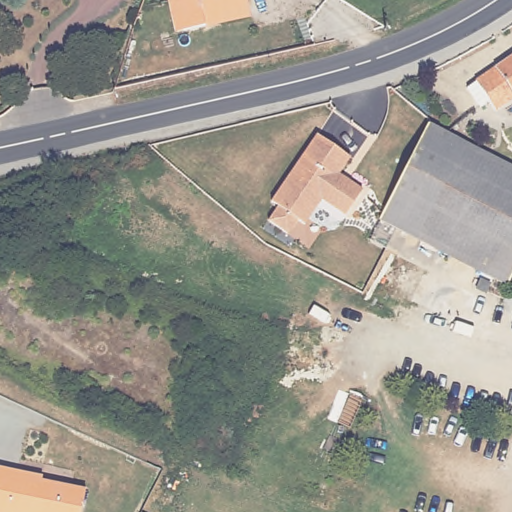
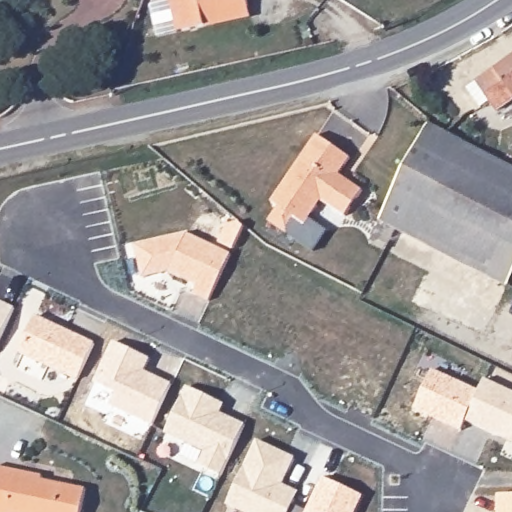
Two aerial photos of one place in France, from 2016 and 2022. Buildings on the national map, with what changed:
unchanged [(203,22),(180,28),(173,30),(168,0),(245,0),(246,4),(248,13),(203,22)]
unchanged [(473,81),(512,53),(512,110),(500,119),(485,98),(477,104),(465,88),(473,81)]
unchanged [(428,128),(512,172),(512,280),(507,290),(379,223),(428,128)]
unchanged [(327,232),(312,252),(288,234),(269,220),(273,214),(278,206),(271,201),(295,166),(317,134),(351,157),(339,174),(363,190),(347,213),(345,215),(322,199),(305,224),(309,219),(327,232)]
new [(191,230),(235,251),(213,297),(198,290),(202,282),(173,268),(147,274),(140,242),(191,230)]
new [(15,309),(0,338),(0,301),(15,309)]
new [(35,314),(94,343),(76,381),(18,353),(35,314)]
new [(479,391),(486,378),(512,391),(512,442),(466,420),(460,432),(414,409),(433,369),(479,391)]
new [(186,387),(225,404),(221,413),(245,423),(220,475),(198,464),(204,450),(165,434),(186,387)]
new [(256,439),(295,457),(282,484),(299,491),(293,506),(306,511),(322,476),(364,495),(356,512),(244,512),(226,504),(256,439)]
unchanged [(86,512),(0,512),(0,464),(43,471),(48,478),(90,486),(86,512)]
new [(512,498),(512,512),(499,512),(498,498),(512,498)]

